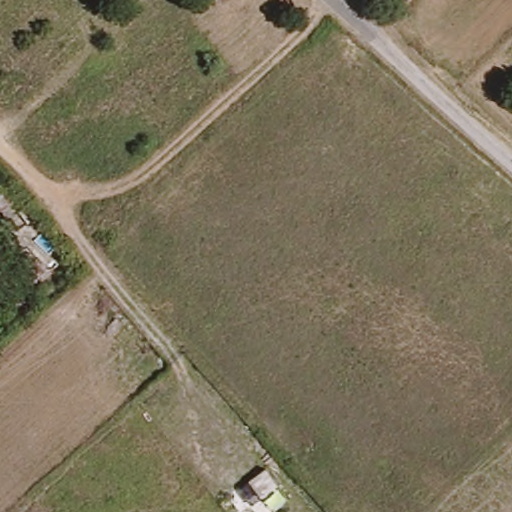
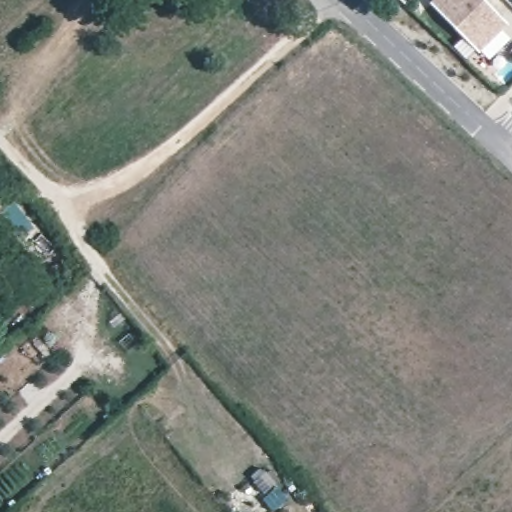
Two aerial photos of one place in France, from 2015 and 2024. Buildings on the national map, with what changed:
new [(501,24),(474,52),(425,9),(435,0),(479,0),(501,24)]
unchanged [(17,219),(7,228),(0,220),(0,200),(17,219)]

